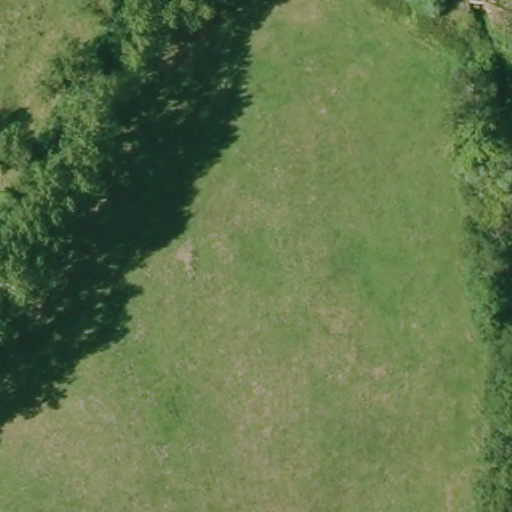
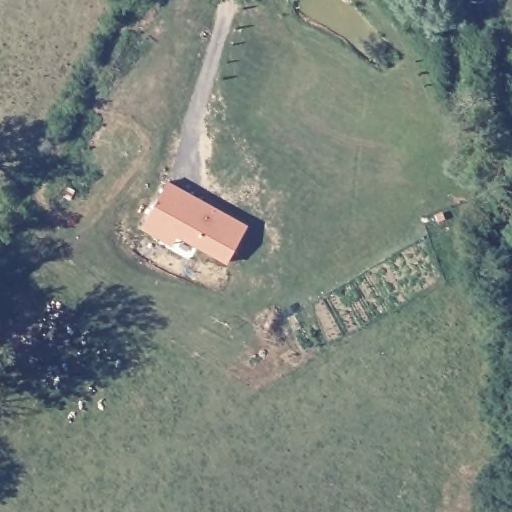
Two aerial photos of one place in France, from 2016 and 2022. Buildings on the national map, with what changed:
new [(227,265),(178,237),(172,247),(141,230),(168,181),(248,226),(227,265)]

